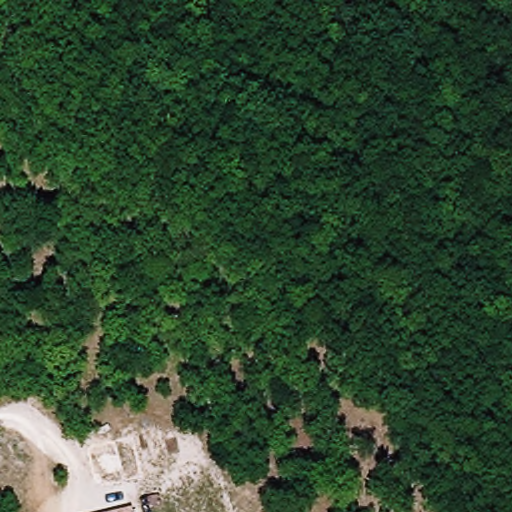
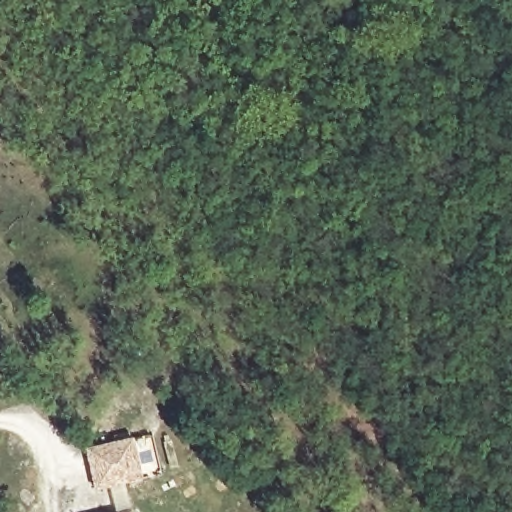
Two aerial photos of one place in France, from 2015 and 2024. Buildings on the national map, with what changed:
new [(134,439),(142,479),(96,488),(88,448),(134,439)]
unchanged [(132,509),(133,512),(120,512),(132,509)]

